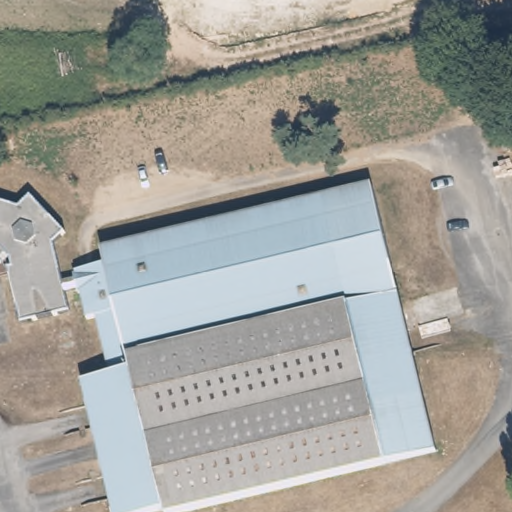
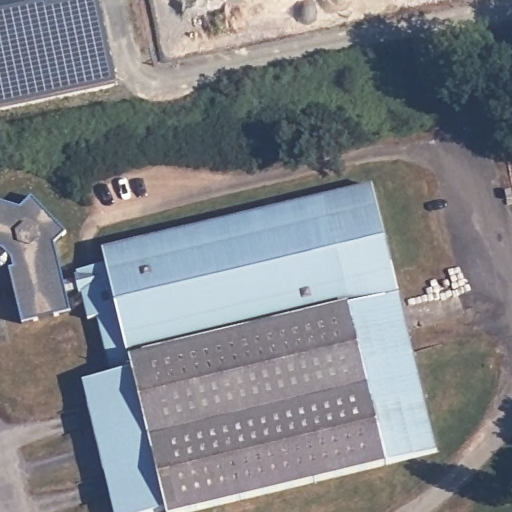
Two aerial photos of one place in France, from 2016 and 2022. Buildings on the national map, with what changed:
new [(117,86),(0,110),(0,0),(96,0),(117,86)]
unchanged [(75,287),(77,277),(107,270),(104,256),(376,191),(439,452),(192,512),(165,512),(165,511),(161,512),(110,512),(80,384),(106,377),(95,321),(85,322),(79,296),(67,295),(65,289),(75,287)]
unchanged [(62,297),(67,317),(20,327),(8,268),(14,267),(12,258),(0,249),(0,204),(24,210),(34,201),(67,237),(55,247),(65,289),(67,295),(62,297)]

